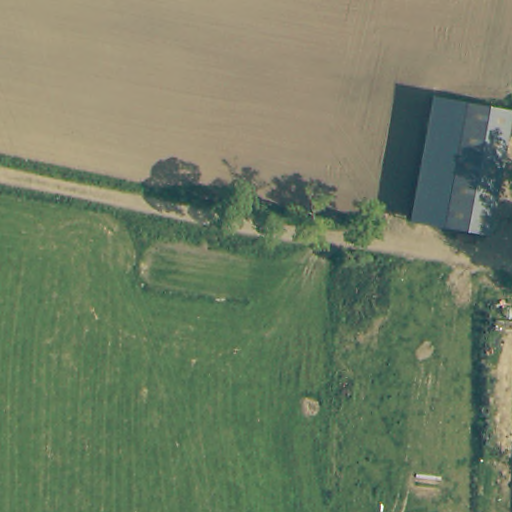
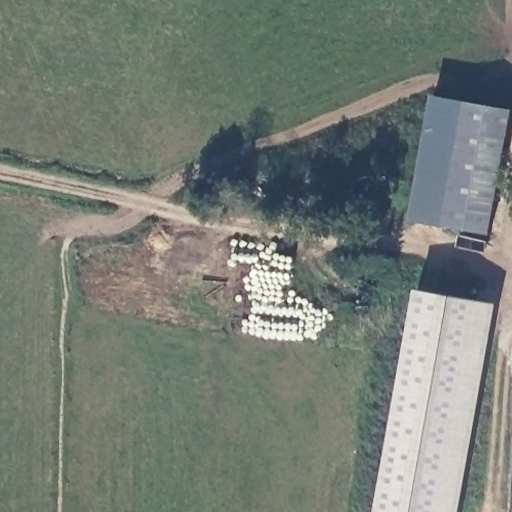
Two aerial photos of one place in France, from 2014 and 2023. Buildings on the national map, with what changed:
unchanged [(411,221),(433,95),(469,102),(449,225),(411,221)]
unchanged [(512,112),(512,121),(492,234),(449,225),(469,102),(512,112)]
new [(461,512),(376,512),(416,289),(497,304),(461,512)]

